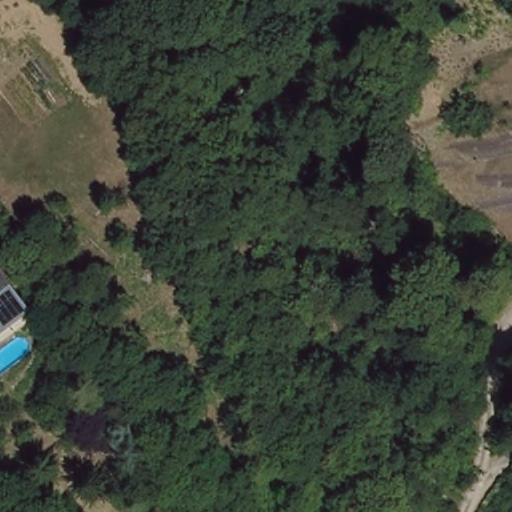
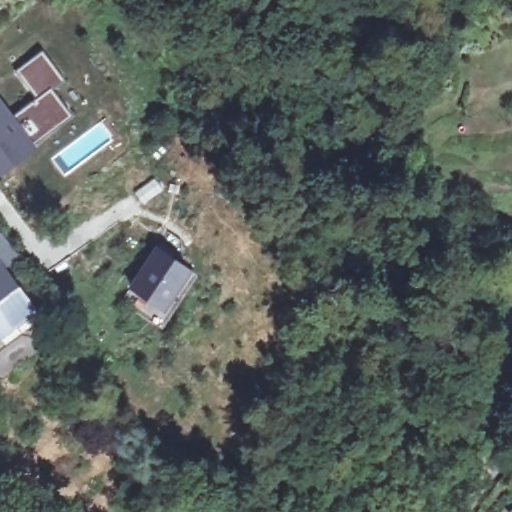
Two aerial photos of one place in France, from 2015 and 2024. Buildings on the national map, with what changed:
new [(4,117),(30,97),(9,69),(36,49),(60,79),(47,89),(68,117),(0,169),(0,112),(4,117)]
new [(152,240),(169,251),(185,263),(157,302),(125,280),(152,240)]
unchanged [(37,305),(11,323),(7,318),(0,323),(0,251),(37,305)]
new [(125,280),(157,302),(185,263),(194,268),(155,324),(114,295),(125,280)]

